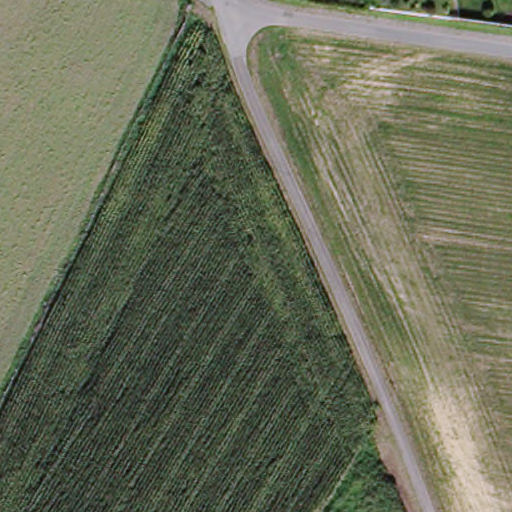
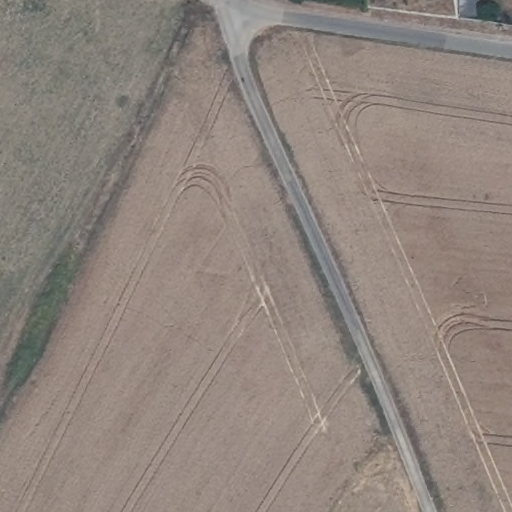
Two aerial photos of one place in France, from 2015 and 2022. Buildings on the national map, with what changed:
[]

